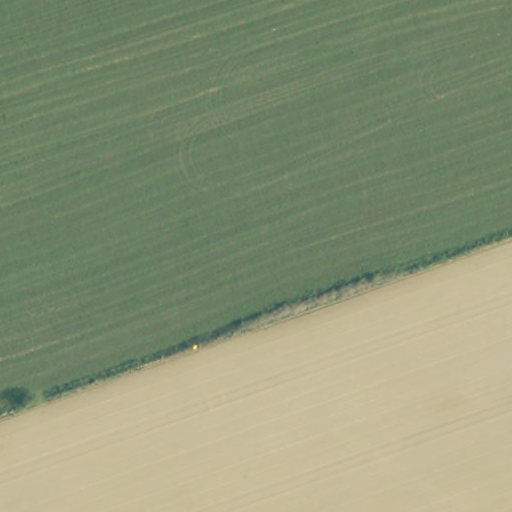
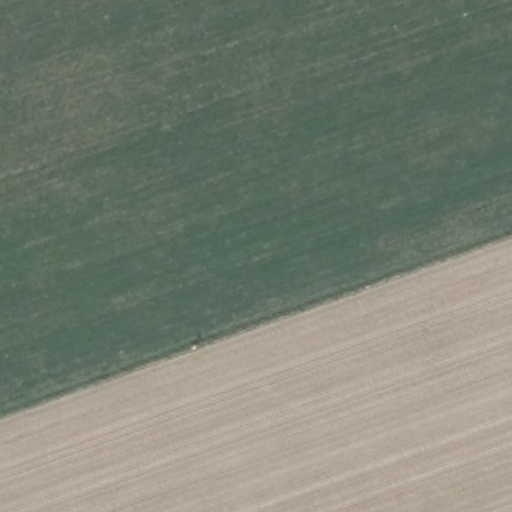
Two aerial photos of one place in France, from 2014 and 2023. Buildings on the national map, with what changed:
[]

